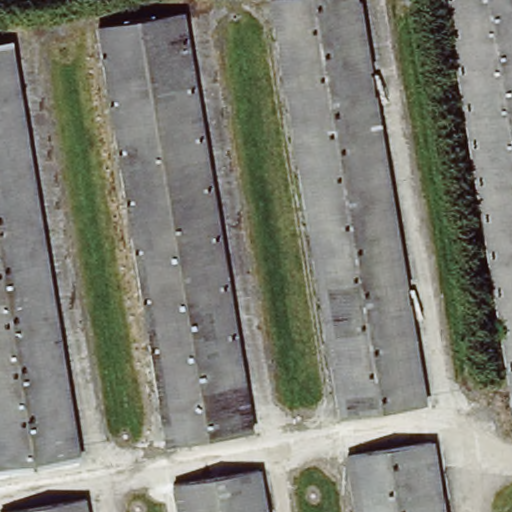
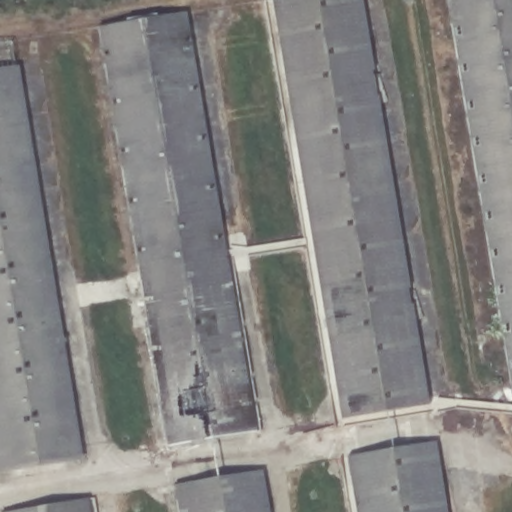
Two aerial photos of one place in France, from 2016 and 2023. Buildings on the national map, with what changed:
unchanged [(372,0),(438,400),(338,420),(268,1),(274,0),(372,0)]
unchanged [(512,0),(512,413),(443,0),(512,0)]
unchanged [(194,12),(269,431),(163,447),(93,30),(194,12)]
unchanged [(21,40),(93,461),(0,476),(0,44),(21,40)]
unchanged [(459,512),(357,512),(349,459),(449,444),(459,512)]
unchanged [(280,512),(185,512),(181,485),(274,471),(280,512)]
unchanged [(104,512),(37,512),(102,502),(104,512)]

